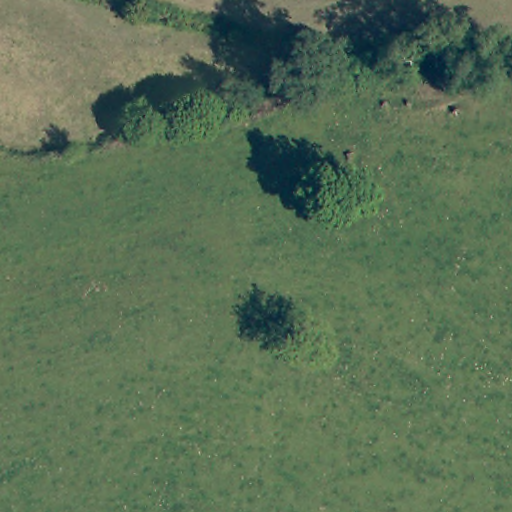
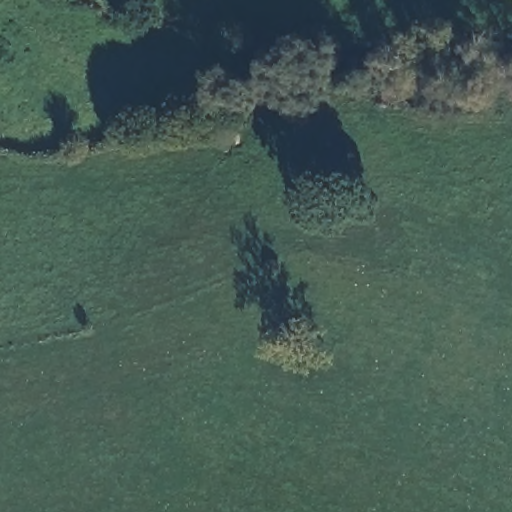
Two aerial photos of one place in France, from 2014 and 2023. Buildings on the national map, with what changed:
[]

